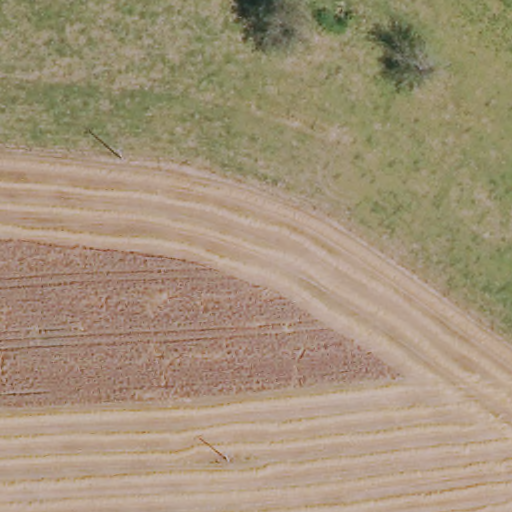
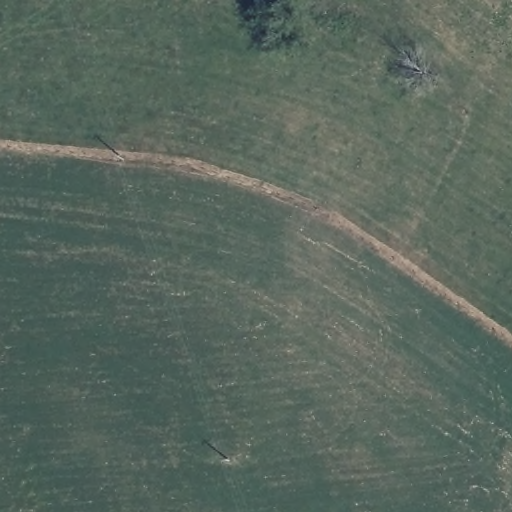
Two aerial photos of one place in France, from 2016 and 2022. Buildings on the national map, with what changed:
[]

